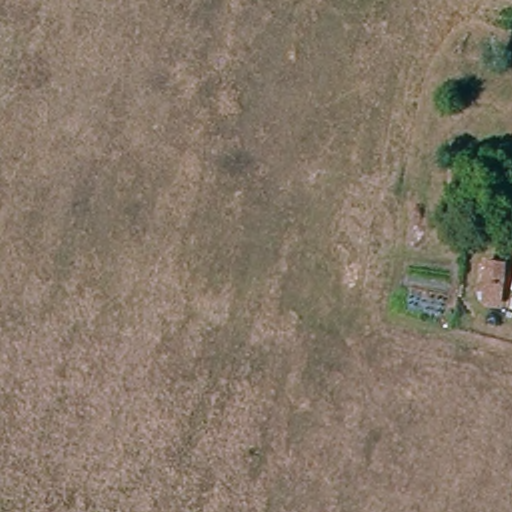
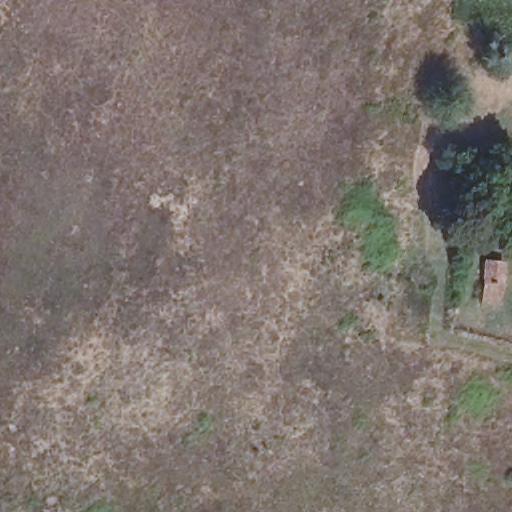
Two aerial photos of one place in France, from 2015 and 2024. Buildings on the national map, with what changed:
unchanged [(511,269),(498,305),(484,301),(490,284),(487,283),(494,262),(511,269)]

